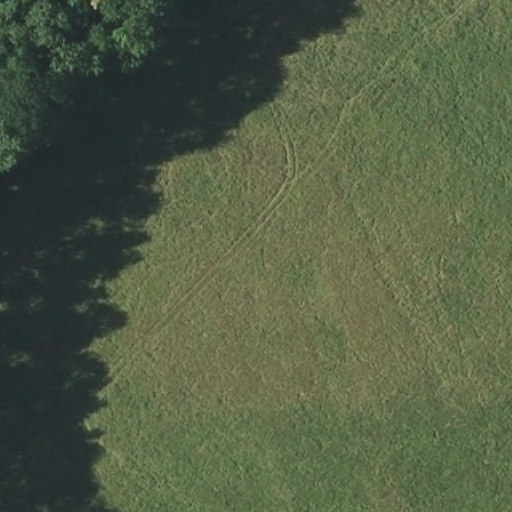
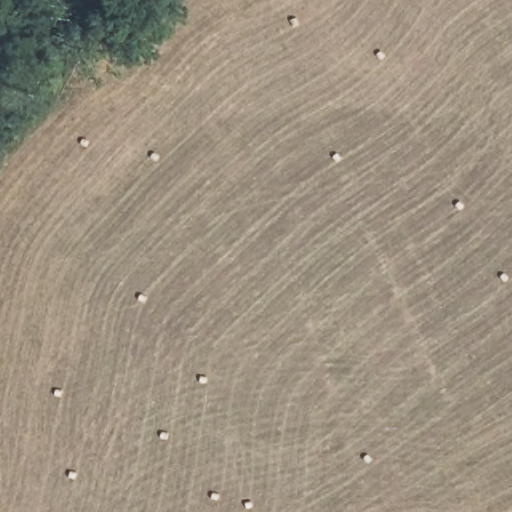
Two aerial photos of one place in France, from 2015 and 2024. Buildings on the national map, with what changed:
[]

